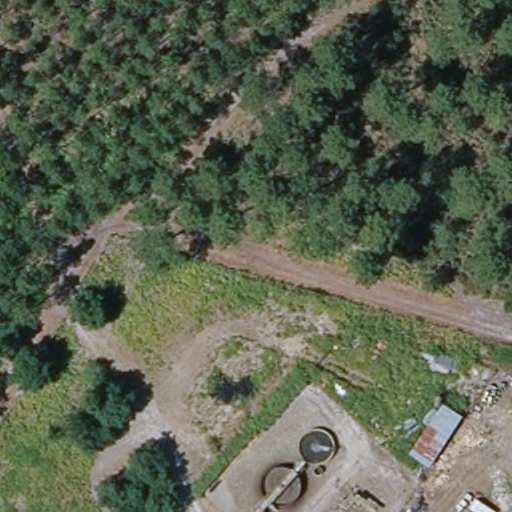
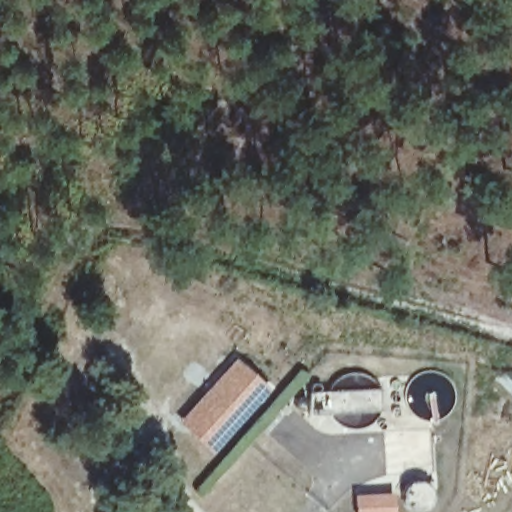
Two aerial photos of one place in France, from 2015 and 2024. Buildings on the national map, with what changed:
demolished [(206,437),(188,422),(226,378),(218,370),(245,341),(271,362),(206,437)]
new [(178,422),(235,358),(269,391),(211,454),(178,422)]
new [(354,495),(394,493),(395,512),(354,512),(354,495)]

